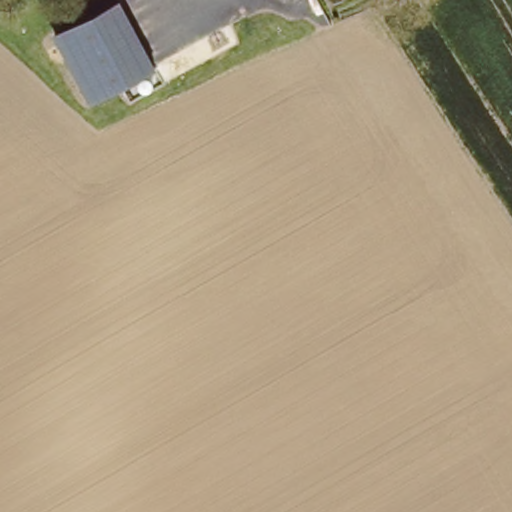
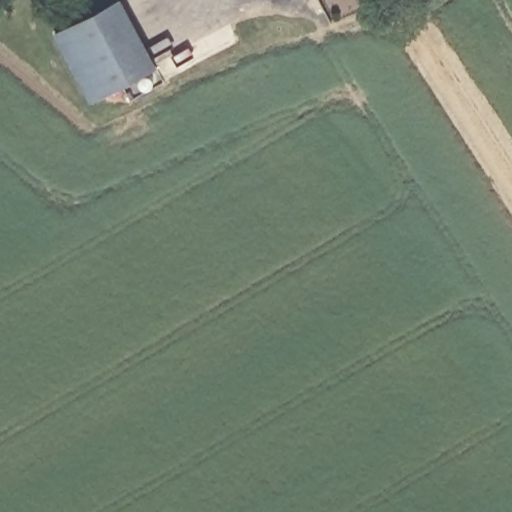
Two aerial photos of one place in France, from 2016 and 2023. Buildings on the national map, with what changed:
unchanged [(56,29),(112,0),(123,0),(156,62),(93,96),(56,29)]

